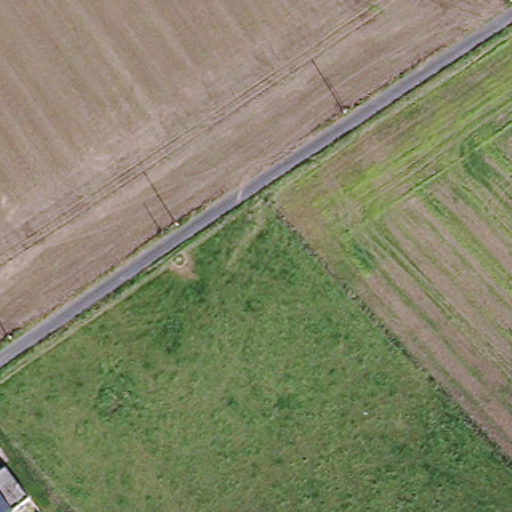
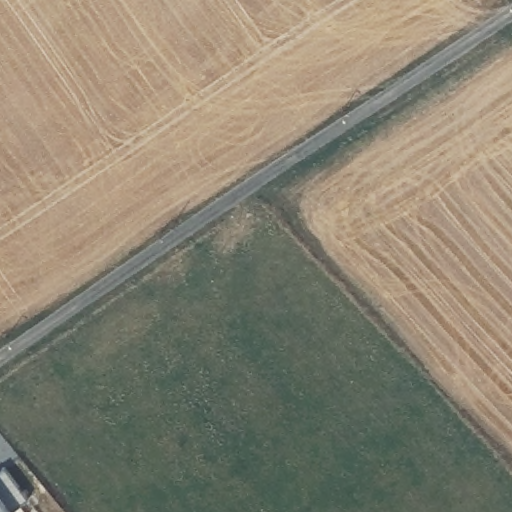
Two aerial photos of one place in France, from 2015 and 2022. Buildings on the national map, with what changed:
unchanged [(27,500),(12,512),(0,512),(0,470),(3,468),(27,500)]

